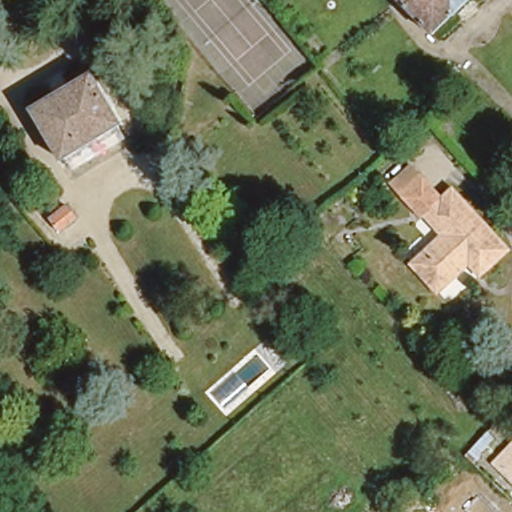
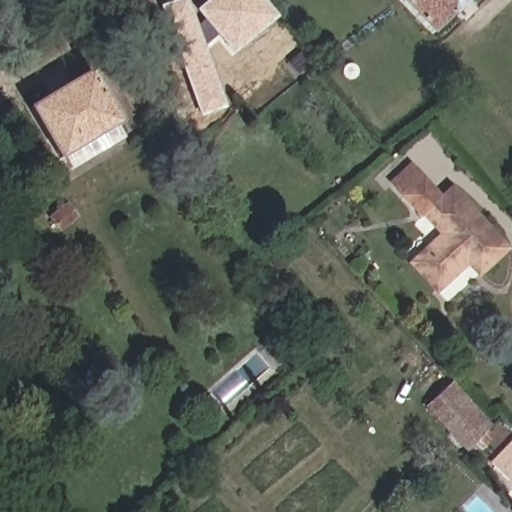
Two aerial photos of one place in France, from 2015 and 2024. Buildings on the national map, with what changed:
new [(215,34),(203,47),(225,107),(200,117),(161,5),(176,0),(186,0),(196,25),(203,19),(196,11),(209,0),(263,0),(277,17),(232,55),(215,34)]
unchanged [(403,0),(462,0),(430,30),(403,0)]
unchanged [(70,155),(65,144),(59,148),(30,96),(67,74),(91,60),(122,110),(117,113),(123,124),(70,155)]
unchanged [(501,245),(475,269),(465,258),(433,287),(410,262),(441,233),(422,212),(419,214),(401,194),(389,181),(411,161),(422,174),(441,194),(448,187),(501,245)]
unchanged [(58,231),(49,219),(64,207),(74,219),(58,231)]
new [(492,426),(465,451),(424,407),(451,381),(492,426)]
unchanged [(512,430),(512,479),(487,455),(512,430)]
unchanged [(466,459),(483,440),(488,435),(494,441),(472,465),(466,459)]

